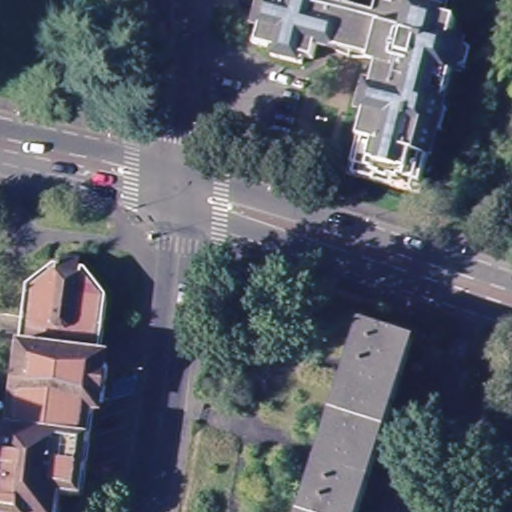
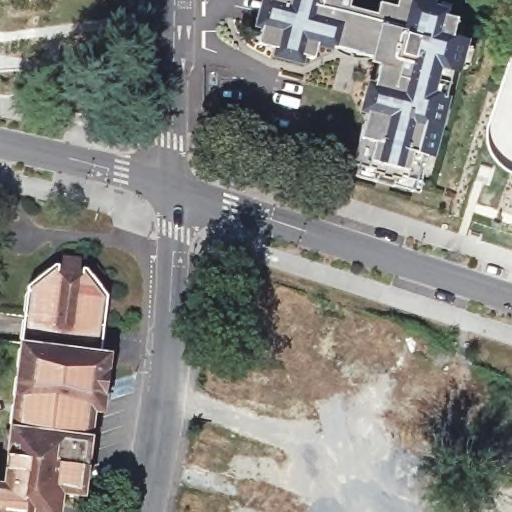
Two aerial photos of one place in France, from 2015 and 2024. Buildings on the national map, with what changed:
unchanged [(446,128),(439,126),(425,180),(426,181),(423,192),(350,172),(352,161),(355,162),(366,117),(361,116),(369,86),(375,88),(381,62),(365,58),(368,50),(340,43),(338,51),(318,45),(313,62),(304,59),(302,66),(272,58),(274,51),(254,46),(265,3),(278,0),(351,0),(347,15),(375,22),(380,5),(395,9),(397,0),(445,13),(442,20),(445,20),(456,24),(453,37),(466,41),(466,42),(474,44),(469,64),(459,62),(447,108),(450,108),(446,128)]
unchanged [(265,3),(265,0),(278,0),(265,3)]
unchanged [(52,268),(59,270),(60,259),(81,261),(80,271),(88,273),(107,302),(103,336),(21,336),(27,291),(52,268)]
demolished [(365,326),(419,343),(361,512),(304,512),(311,491),(318,470),(365,326)]
unchanged [(21,336),(103,336),(100,358),(107,371),(104,401),(92,412),(90,435),(15,437),(8,437),(21,336)]
unchanged [(90,435),(81,497),(59,495),(56,512),(17,512),(15,437),(90,435)]
unchanged [(17,512),(0,512),(0,487),(1,487),(8,437),(15,437),(17,512)]

